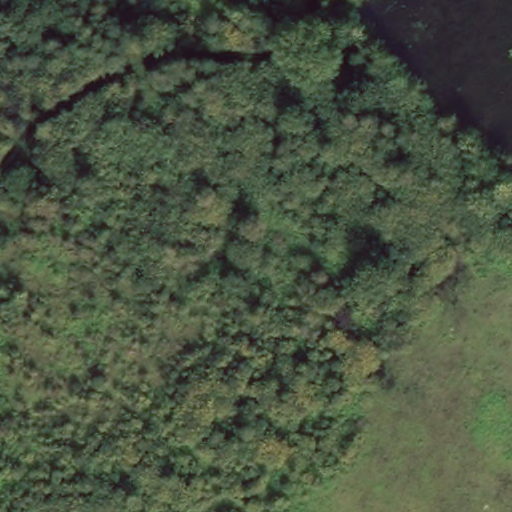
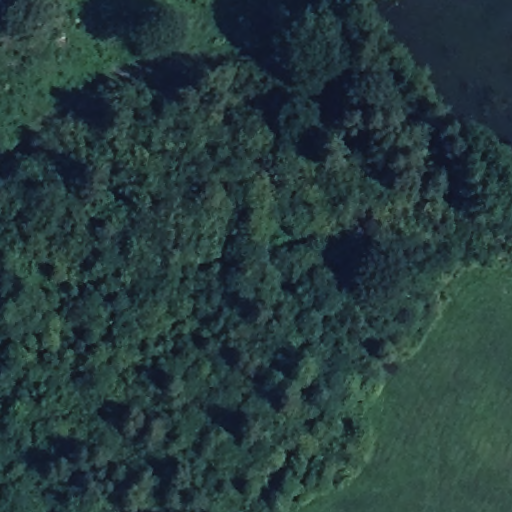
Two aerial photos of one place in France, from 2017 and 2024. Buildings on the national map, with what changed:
[]

